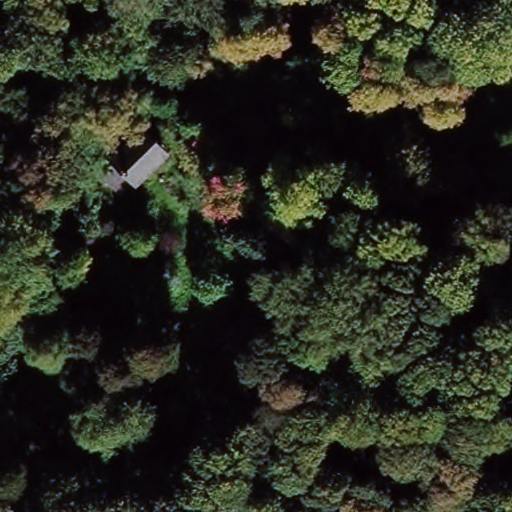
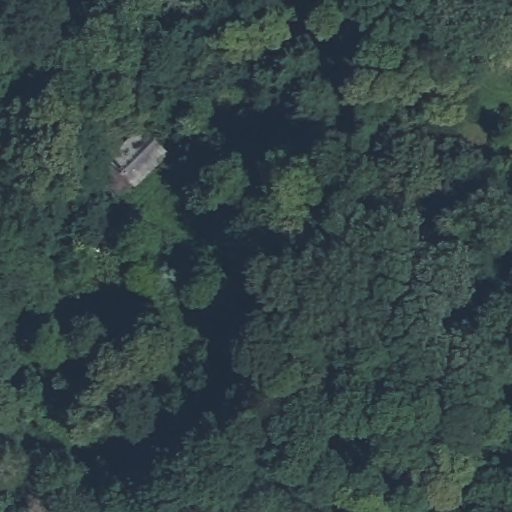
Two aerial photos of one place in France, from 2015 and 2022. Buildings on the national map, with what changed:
unchanged [(138,137),(163,162),(128,198),(102,172),(138,137)]
unchanged [(243,370),(222,390),(223,395),(199,418),(172,392),(299,263),(324,288),(243,370)]

